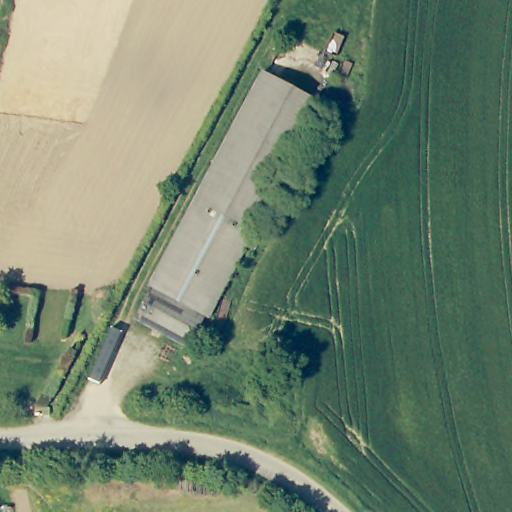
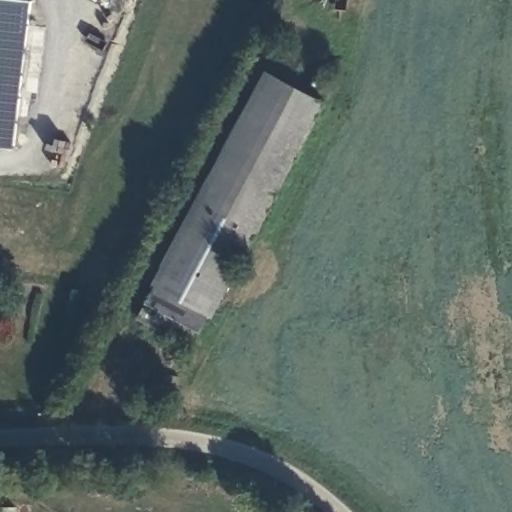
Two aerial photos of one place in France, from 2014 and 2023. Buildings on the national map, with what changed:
new [(14,0),(31,2),(13,147),(0,146),(0,0),(14,0)]
unchanged [(139,312),(268,68),(325,97),(194,340),(175,330),(139,312)]

